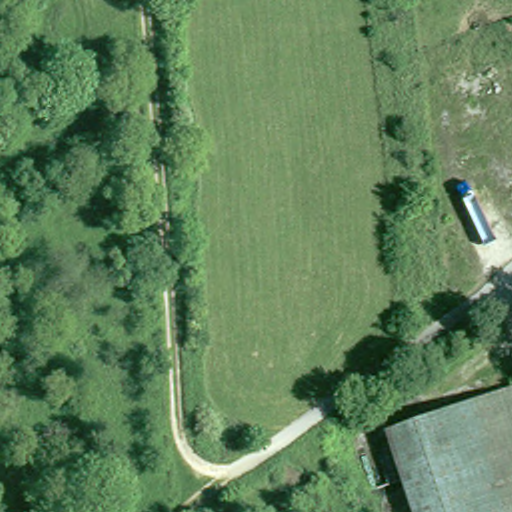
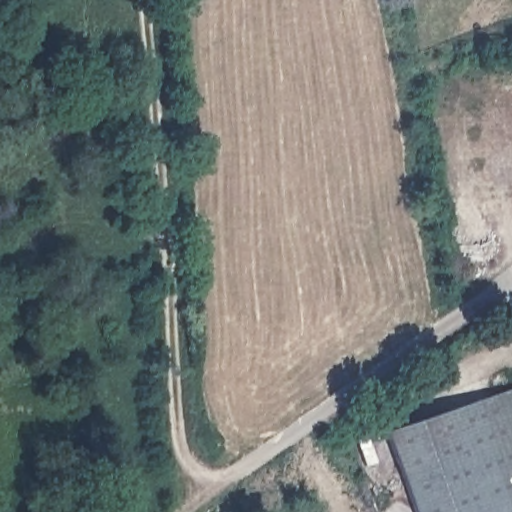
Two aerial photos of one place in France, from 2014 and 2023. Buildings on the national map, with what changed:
unchanged [(512,393),(512,512),(414,512),(389,434),(512,393)]

